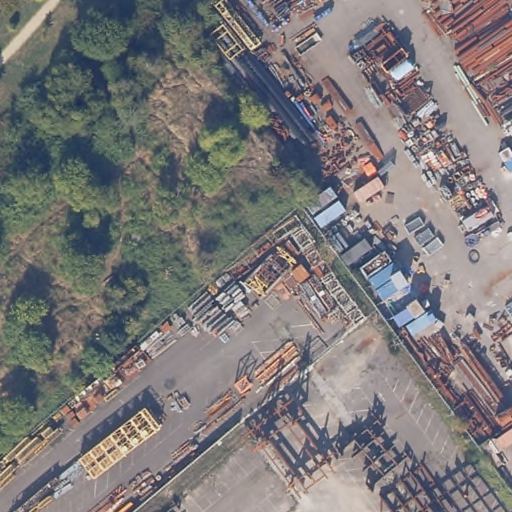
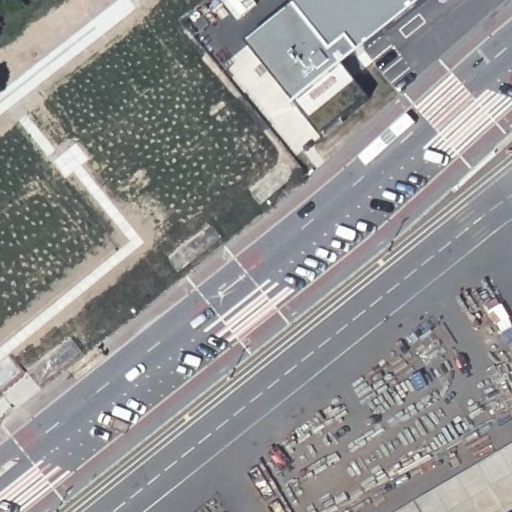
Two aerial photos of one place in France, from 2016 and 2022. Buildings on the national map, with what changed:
new [(342,70),(366,99),(317,136),(295,107),(247,45),(302,0),(427,0),(342,70)]

